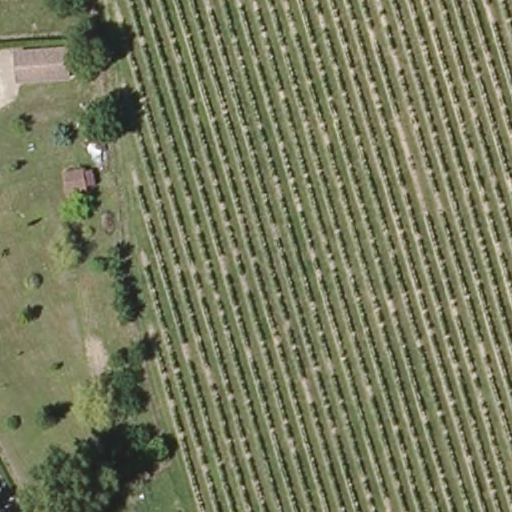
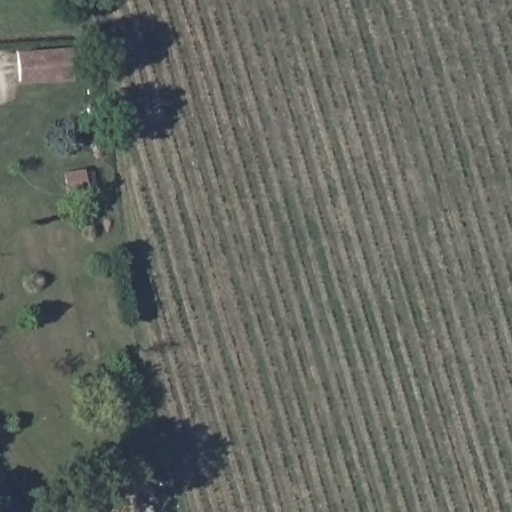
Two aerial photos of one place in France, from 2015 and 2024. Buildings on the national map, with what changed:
unchanged [(72,52),(74,80),(22,84),(21,56),(72,52)]
unchanged [(89,172),(92,192),(75,195),(72,174),(89,172)]

